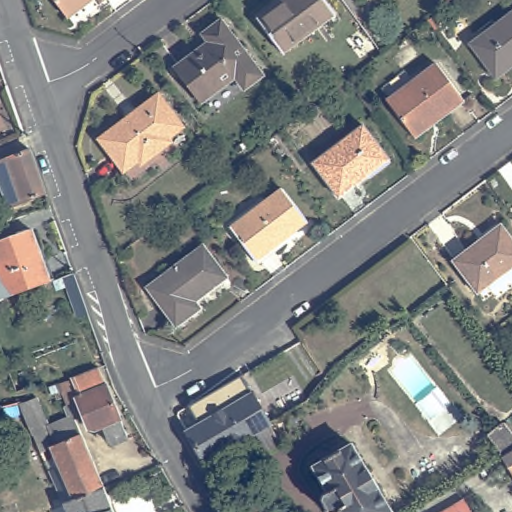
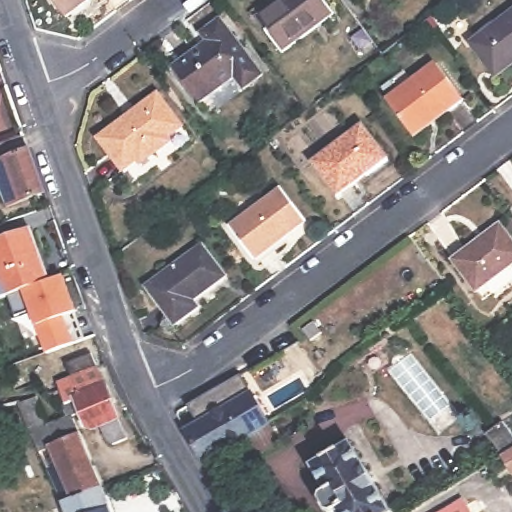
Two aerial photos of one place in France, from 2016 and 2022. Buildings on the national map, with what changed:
unchanged [(100,0),(71,21),(55,0),(100,0)]
unchanged [(287,0),(329,0),(340,14),(287,53),(262,19),(287,0)]
unchanged [(179,67),(212,41),(206,34),(225,19),(268,74),(249,89),(240,77),(206,103),(179,67)]
unchanged [(475,48),(512,20),(512,68),(497,79),(475,48)]
unchanged [(391,104),(440,68),(468,105),(451,118),(448,114),(416,138),(391,104)]
unchanged [(104,138),(164,94),(187,126),(172,138),(175,141),(146,164),(143,159),(128,170),(104,138)]
unchanged [(317,163),(367,125),(393,159),(343,197),(317,163)]
unchanged [(40,149),(55,193),(17,208),(11,189),(0,194),(0,165),(2,164),(40,149)]
unchanged [(235,228),(287,189),(311,220),(283,242),(282,240),(258,258),(235,228)]
unchanged [(457,260),(479,244),(480,246),(506,226),(512,233),(512,269),(481,293),(457,260)]
unchanged [(50,282),(7,297),(0,300),(0,275),(0,240),(30,229),(50,282)]
unchanged [(151,287),(207,244),(231,277),(200,301),(205,308),(180,326),(151,287)]
demolished [(64,277),(74,273),(85,304),(75,308),(64,277)]
new [(64,276),(77,313),(64,318),(74,344),(45,354),(30,313),(16,317),(7,297),(41,284),(50,282),(64,276)]
unchanged [(93,432),(89,429),(82,414),(82,412),(78,401),(66,404),(64,398),(61,392),(59,386),(72,382),(71,379),(66,364),(91,354),(97,369),(128,439),(114,446),(107,441),(101,428),(93,432)]
unchanged [(199,424),(190,409),(242,379),(250,393),(271,428),(206,464),(186,431),(199,424)]
unchanged [(50,388),(56,386),(57,392),(55,394),(51,394),(50,388)]
unchanged [(54,508),(63,504),(62,503),(48,470),(58,466),(50,449),(40,452),(25,414),(5,417),(2,405),(20,402),(20,404),(37,397),(49,425),(70,417),(72,419),(80,437),(104,488),(112,512),(55,512),(54,508)]
unchanged [(507,456),(491,436),(506,422),(512,429),(512,463),(507,456)]
unchanged [(343,511),(342,512),(333,512),(326,500),(327,494),(332,492),(316,466),(355,444),(395,512),(344,512),(343,511)]
unchanged [(467,499),(476,512),(445,512),(467,499)]

